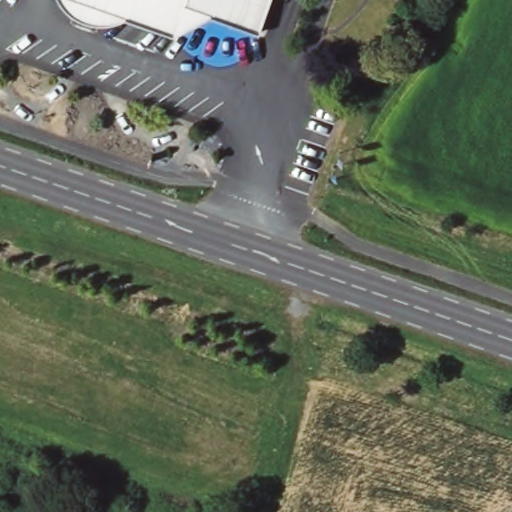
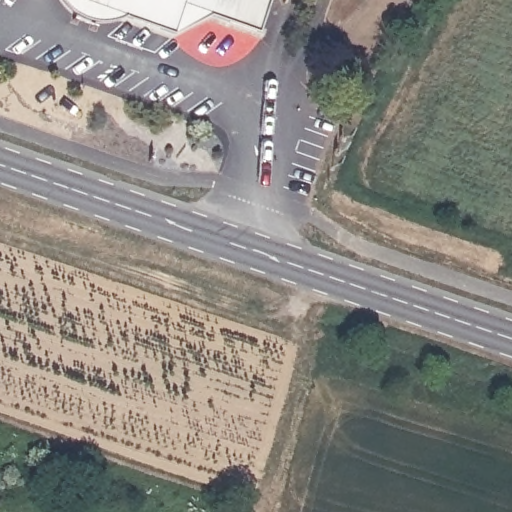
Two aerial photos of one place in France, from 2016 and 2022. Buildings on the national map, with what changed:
unchanged [(258,6),(248,34),(247,36),(205,21),(171,27),(127,12),(126,12),(125,12),(124,12),(123,12),(122,12),(121,13),(120,13),(119,13),(117,14),(116,14),(115,14),(114,14),(113,14),(112,14),(111,14),(110,14),(108,14),(107,14),(106,14),(105,14),(104,14),(103,14),(100,14),(100,13),(99,13),(98,13),(97,12),(96,12),(95,12),(94,12),(92,12),(91,12),(91,11),(90,11),(89,11),(87,10),(86,10),(85,10),(85,9),(84,9),(83,9),(82,8),(81,7),(80,7),(79,7),(79,6),(77,6),(77,5),(76,5),(75,4),(74,3),(73,2),(72,2),(71,2),(71,1),(70,1),(70,0),(261,0),(260,2),(258,6)]

